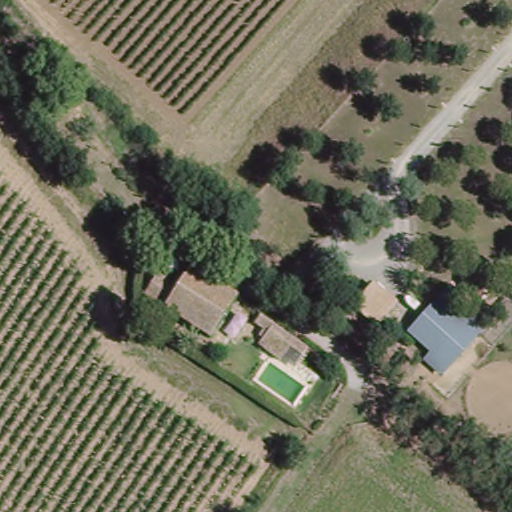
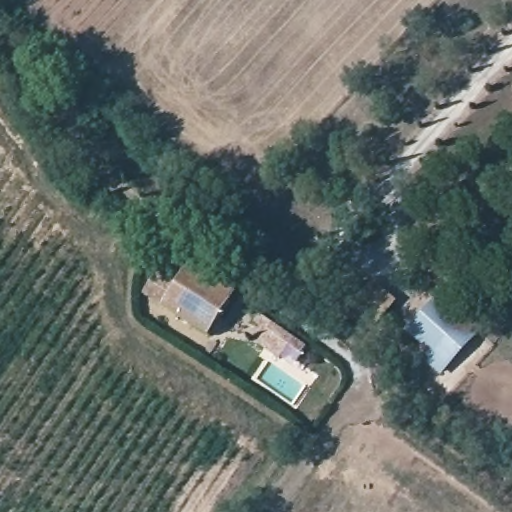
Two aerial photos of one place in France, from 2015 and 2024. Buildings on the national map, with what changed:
unchanged [(162,307),(188,269),(231,298),(205,339),(162,307)]
unchanged [(373,276),(401,297),(402,298),(381,325),(351,302),(373,276)]
unchanged [(263,311),(310,344),(302,355),(289,347),(280,358),(258,343),(267,330),(255,322),(263,311)]
unchanged [(421,316),(447,337),(436,350),(410,329),(421,316)]

